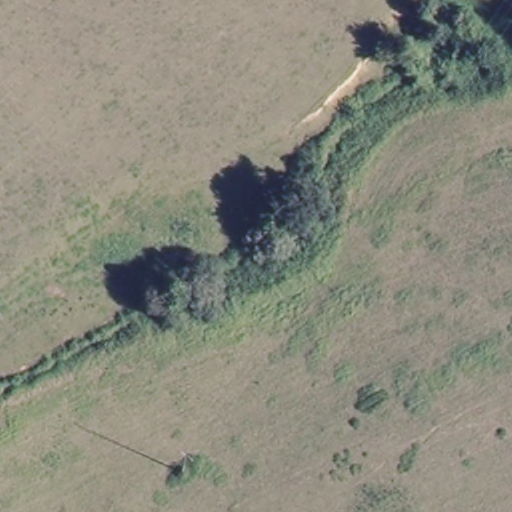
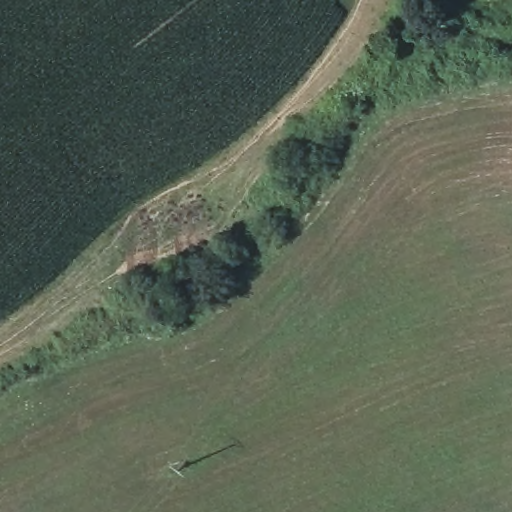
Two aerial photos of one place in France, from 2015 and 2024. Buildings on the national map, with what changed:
[]

